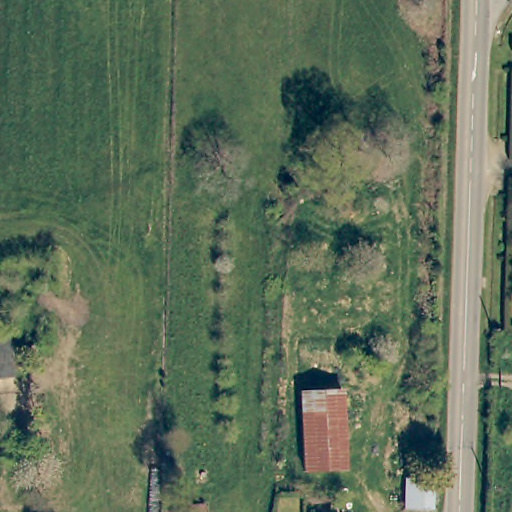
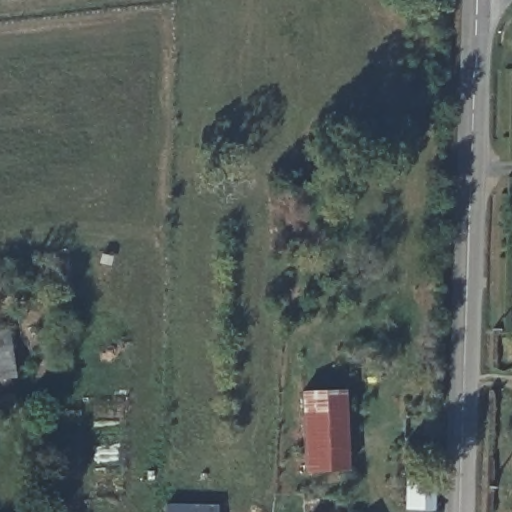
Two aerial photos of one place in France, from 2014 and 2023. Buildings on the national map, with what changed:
unchanged [(9,377),(0,378),(0,330),(5,330),(9,377)]
unchanged [(307,482),(306,473),(301,474),(297,393),(341,390),(345,470),(331,471),(332,480),(307,482)]
unchanged [(434,478),(432,511),(428,511),(402,510),(402,478),(431,478),(434,478)]
new [(167,512),(168,503),(218,505),(217,512),(167,512)]

